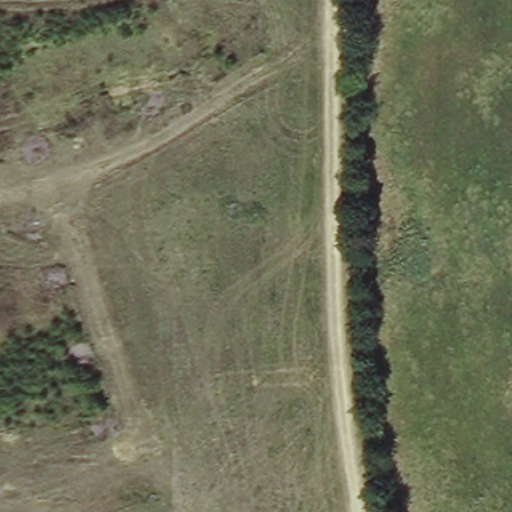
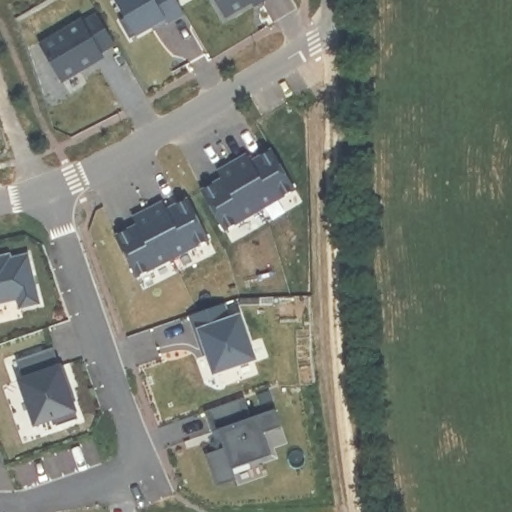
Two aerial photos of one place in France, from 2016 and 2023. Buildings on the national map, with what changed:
new [(117,0),(178,0),(187,15),(169,25),(167,21),(132,41),(122,23),(128,20),(116,0),(117,0)]
new [(251,3),(225,18),(215,0),(266,0),(254,7),(251,3)]
new [(83,21),(84,23),(98,15),(116,45),(100,55),(104,62),(64,85),(40,46),(83,21)]
new [(251,160),(273,146),(295,190),(223,234),(197,189),(220,177),(217,170),(247,153),(251,160)]
new [(166,208),(189,197),(210,240),(137,277),(114,235),(135,225),(131,216),(163,201),(166,208)]
new [(12,264),(29,260),(41,306),(23,310),(21,301),(0,306),(0,263),(11,260),(12,264)]
new [(227,311),(233,328),(243,325),(258,368),(218,382),(209,356),(206,356),(195,322),(227,311)]
new [(56,351),(63,370),(67,369),(73,386),(69,388),(81,422),(60,430),(57,425),(37,434),(20,386),(26,383),(19,365),(56,351)]
new [(251,425),(277,415),(283,433),(268,438),(275,464),(237,476),(240,485),(221,492),(209,460),(223,455),(217,436),(216,437),(209,416),(245,403),(251,425)]

